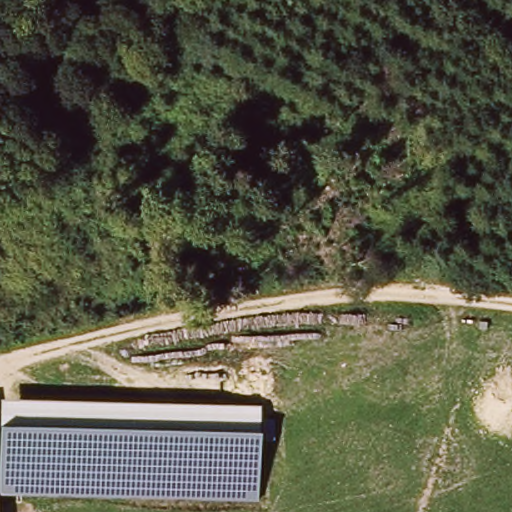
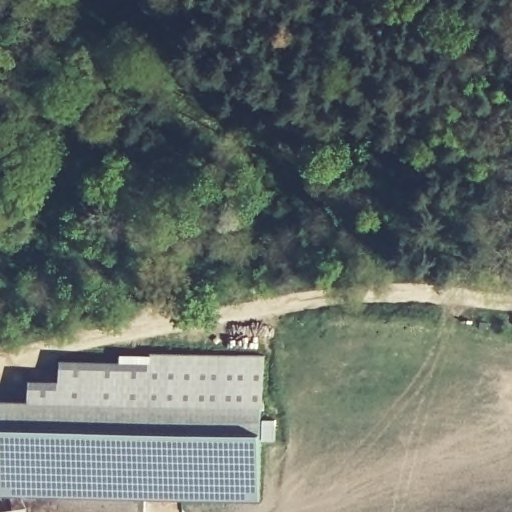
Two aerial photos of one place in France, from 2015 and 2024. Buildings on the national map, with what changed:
new [(31,378),(60,380),(61,360),(151,362),(152,352),(265,356),(263,407),(260,407),(30,402),(31,378)]
unchanged [(260,501),(0,494),(0,442),(0,426),(1,401),(260,407),(260,432),(260,501)]
new [(30,512),(0,512),(0,509),(29,506),(30,512)]

